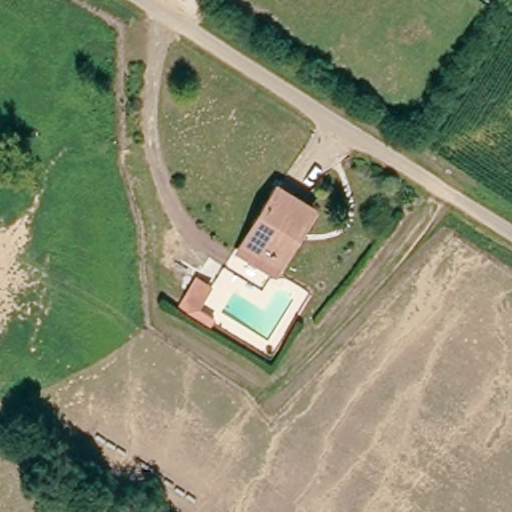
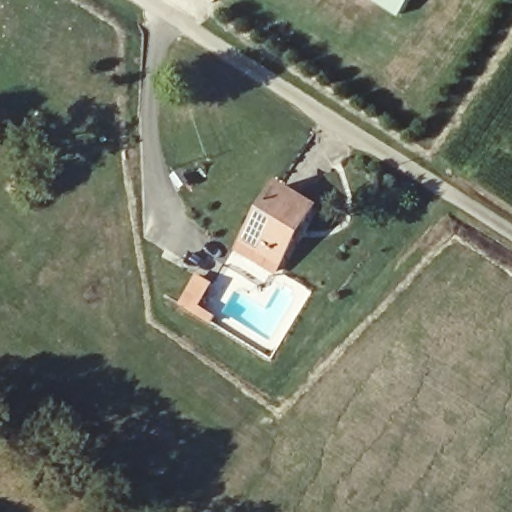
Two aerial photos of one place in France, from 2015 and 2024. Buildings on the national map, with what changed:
new [(375,0),(411,0),(401,16),(375,0)]
unchanged [(242,251),(280,190),(315,211),(277,273),(242,251)]
unchanged [(182,300),(191,286),(200,291),(191,306),(182,300)]

